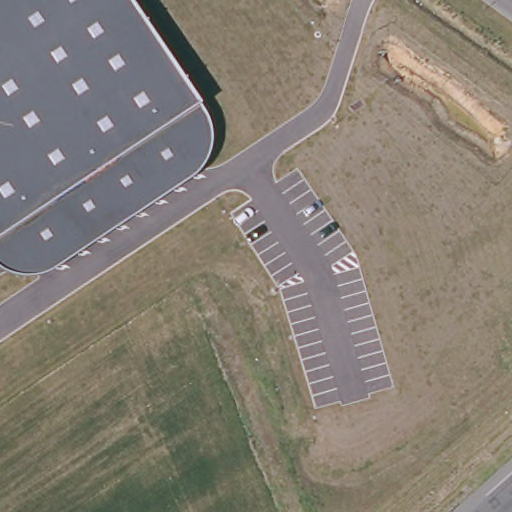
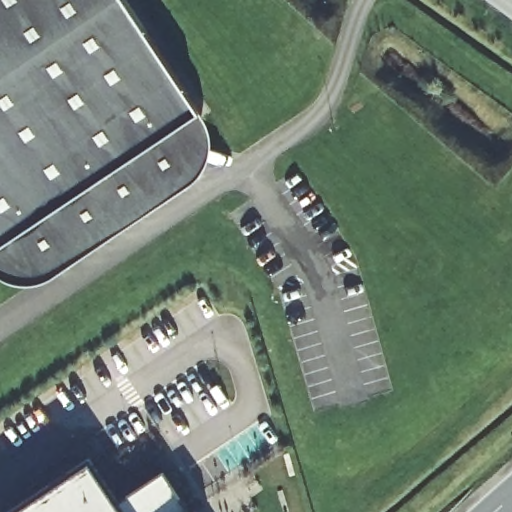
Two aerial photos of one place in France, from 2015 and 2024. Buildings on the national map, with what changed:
unchanged [(206,120),(208,128),(209,135),(209,144),(208,151),(206,159),(203,165),(198,172),(194,177),(188,183),(185,185),(171,194),(154,205),(55,272),(48,275),(40,277),(33,279),(25,279),(17,278),(10,276),(3,273),(0,272),(0,0),(126,0),(200,109),(202,114),(206,120)]
new [(89,456),(119,504),(163,468),(193,512),(9,512),(89,456)]

